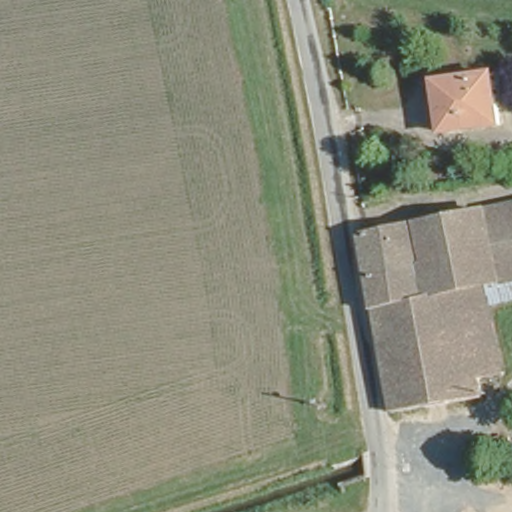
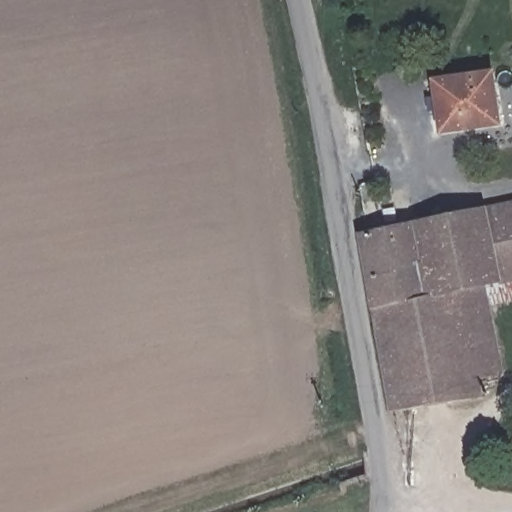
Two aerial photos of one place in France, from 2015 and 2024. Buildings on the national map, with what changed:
unchanged [(440,76),(496,69),(505,119),(497,119),(449,127),(449,122),(440,76)]
unchanged [(361,228),(512,198),(512,272),(494,276),(512,362),(482,368),(487,388),(408,407),(397,408),(361,228)]

